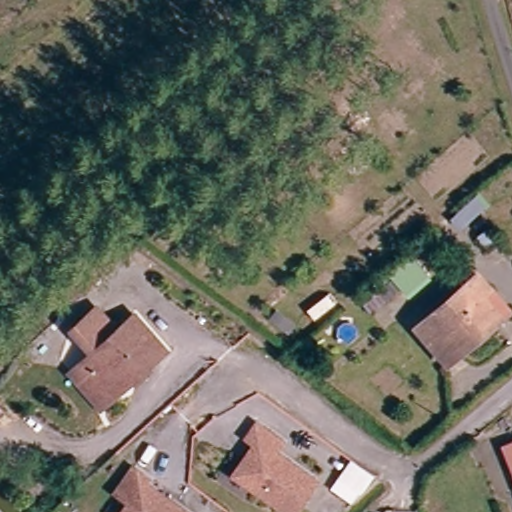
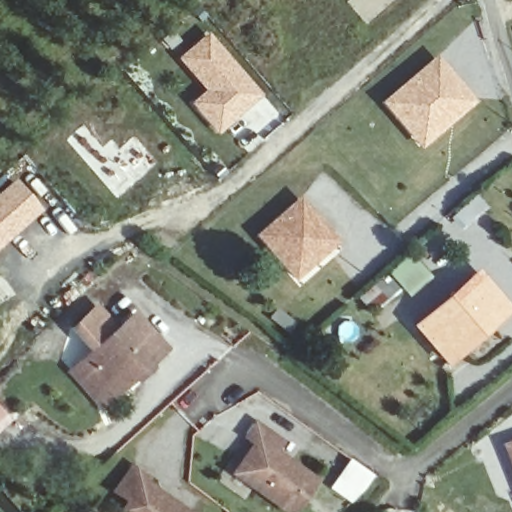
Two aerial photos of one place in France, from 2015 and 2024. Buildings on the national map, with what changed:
new [(367,25),(345,2),(348,0),(395,0),(367,25)]
new [(262,96),(218,135),(190,104),(204,91),(175,59),(208,32),(262,96)]
new [(476,102),(420,149),(379,102),(436,55),(476,102)]
new [(102,146),(110,139),(119,148),(133,135),(157,162),(117,199),(65,140),(83,124),(102,146)]
new [(41,210),(0,247),(0,192),(15,179),(41,210)]
new [(339,240),(294,282),(253,236),(300,195),(339,240)]
new [(411,261),(415,257),(429,273),(406,294),(400,288),(378,308),(373,303),(368,308),(360,298),(407,256),(411,261)]
unchanged [(449,369),(415,327),(467,282),(479,272),(492,289),(482,298),(502,324),(449,369)]
unchanged [(133,319),(163,355),(100,411),(70,374),(91,357),(71,332),(94,310),(114,335),(133,319)]
new [(11,419),(0,431),(0,408),(11,419)]
unchanged [(278,446),(268,458),(281,468),(285,468),(310,487),(291,512),(275,512),(229,477),(251,447),(243,441),(253,427),(278,446)]
unchanged [(512,442),(512,471),(501,446),(512,442)]
unchanged [(346,466),(366,481),(354,497),(335,482),(346,466)]
unchanged [(145,481),(139,488),(168,510),(172,508),(177,512),(121,512),(126,505),(113,495),(131,471),(145,481)]

